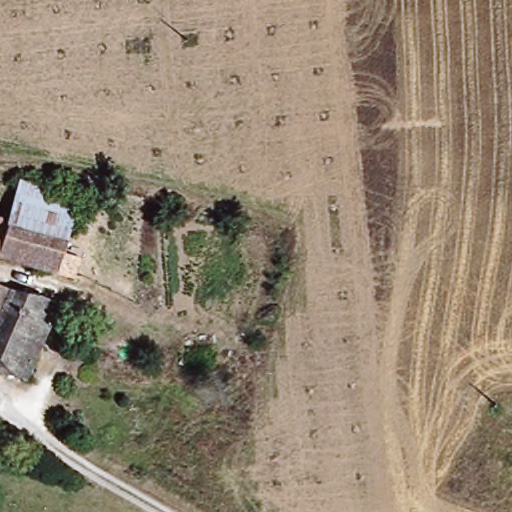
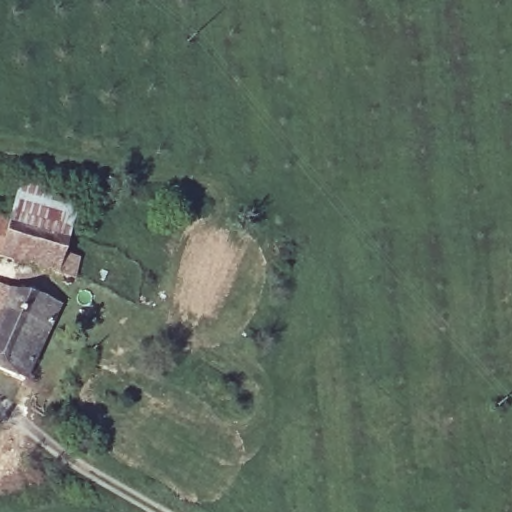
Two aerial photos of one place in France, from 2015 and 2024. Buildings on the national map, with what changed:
unchanged [(65,234),(5,215),(14,185),(75,205),(65,234)]
unchanged [(62,243),(124,264),(114,297),(0,260),(0,224),(1,224),(5,215),(65,234),(62,243)]
unchanged [(12,291),(57,311),(26,383),(0,372),(0,319),(12,291)]

